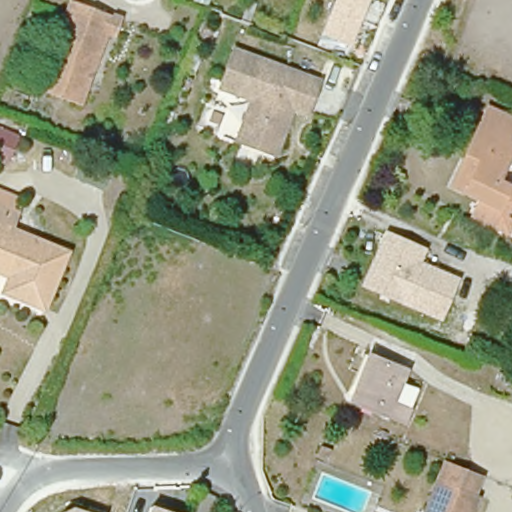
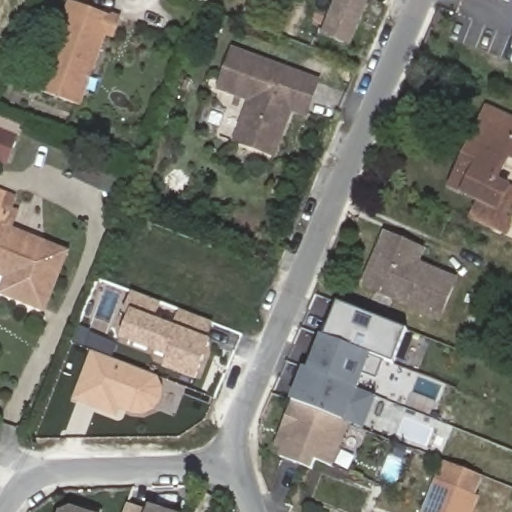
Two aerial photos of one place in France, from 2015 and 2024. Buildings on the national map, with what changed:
unchanged [(187,4),(176,32),(163,27),(173,0),(176,0),(187,4)]
unchanged [(350,42),(325,32),(338,0),(367,0),(350,42)]
unchanged [(125,27),(117,41),(110,37),(78,109),(36,90),(75,4),(125,27)]
unchanged [(233,49),(317,82),(304,114),(289,109),(272,155),(234,140),(250,99),(218,87),(233,49)]
unchanged [(465,215),(472,198),(458,191),(446,185),(459,157),(483,104),(512,115),(512,148),(508,146),(495,175),(506,183),(496,203),(512,210),(512,214),(504,233),(465,215)]
unchanged [(11,166),(0,162),(0,124),(24,133),(11,166)]
unchanged [(13,226),(69,249),(44,306),(1,289),(7,274),(0,271),(0,201),(19,209),(13,226)]
unchanged [(441,321),(362,286),(386,233),(427,249),(422,262),(459,277),(441,321)]
new [(129,316),(123,314),(133,291),(163,303),(156,319),(175,326),(181,310),(214,324),(210,339),(214,341),(198,381),(165,370),(169,358),(122,340),(129,316)]
new [(340,303),(407,329),(393,363),(327,337),(340,303)]
new [(314,372),(327,337),(393,363),(379,397),(314,372)]
new [(92,351),(161,377),(164,388),(163,399),(156,410),(144,415),(132,414),(121,410),(118,417),(74,400),(92,351)]
demolished [(368,353),(409,369),(388,418),(349,403),(368,353)]
new [(292,403),(300,382),(309,386),(314,372),(379,397),(365,430),(350,425),(292,403)]
new [(274,446),(292,403),(350,425),(334,466),(316,460),(313,469),(279,456),(281,449),(274,446)]
unchanged [(455,463),(490,477),(479,500),(436,485),(446,459),(455,463)]
unchanged [(479,500),(473,512),(424,512),(436,485),(479,500)]
unchanged [(172,512),(151,512),(153,506),(172,512)]
unchanged [(85,512),(65,512),(72,508),(85,512)]

